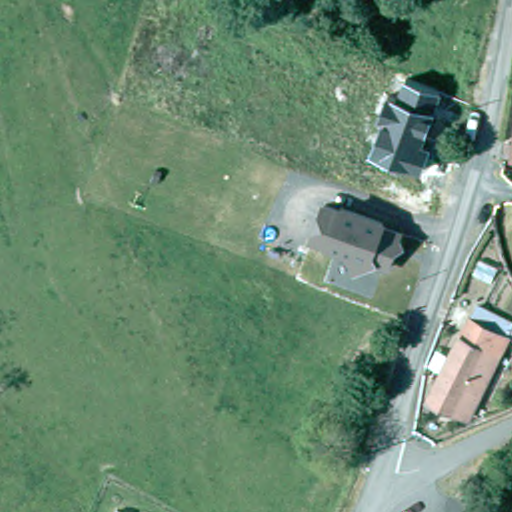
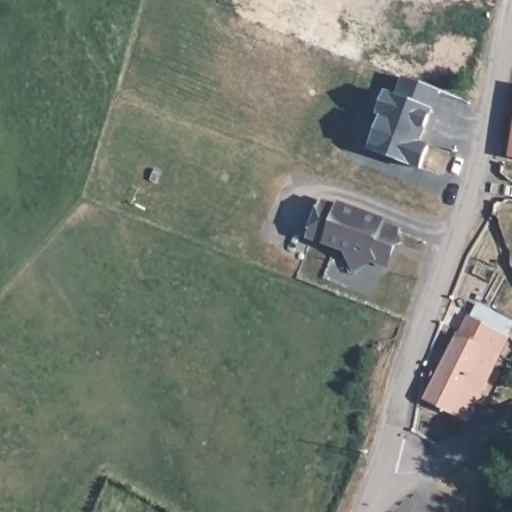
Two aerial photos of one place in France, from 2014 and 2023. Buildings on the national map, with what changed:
unchanged [(441,89),(423,142),(431,144),(421,172),(370,152),(383,117),(379,115),(388,90),(398,95),(404,76),(441,89)]
unchanged [(337,208),(341,198),(390,218),(387,225),(405,231),(401,239),(405,246),(396,251),(391,267),(378,263),(355,274),(345,251),(308,240),(321,202),(337,208)]
unchanged [(466,413),(426,395),(438,370),(455,335),(465,315),(504,334),(495,352),(474,397),(466,413)]

